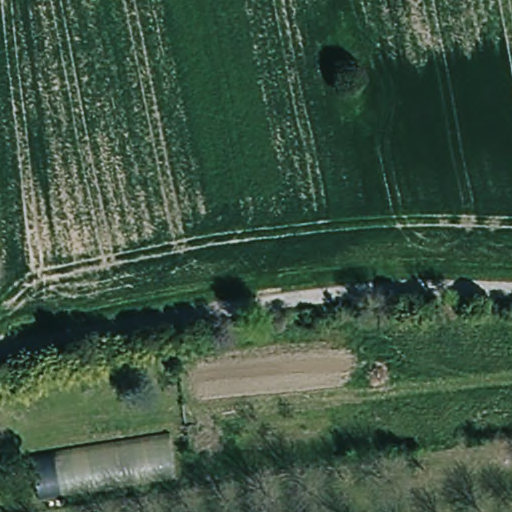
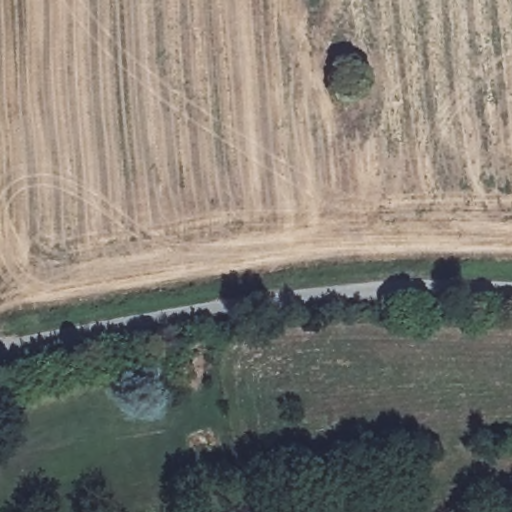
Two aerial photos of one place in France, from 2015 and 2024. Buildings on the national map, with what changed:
demolished [(176,478),(36,499),(29,455),(168,434),(176,478)]

